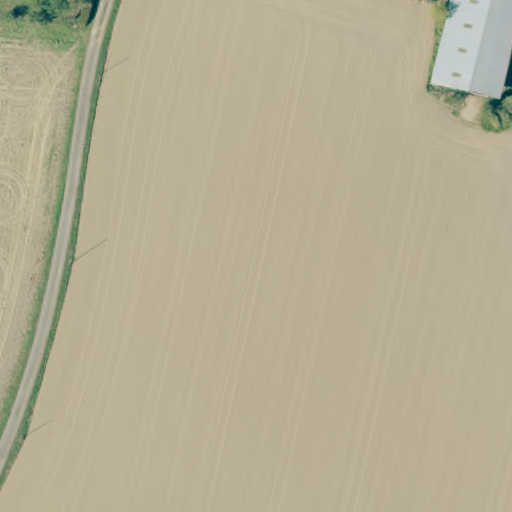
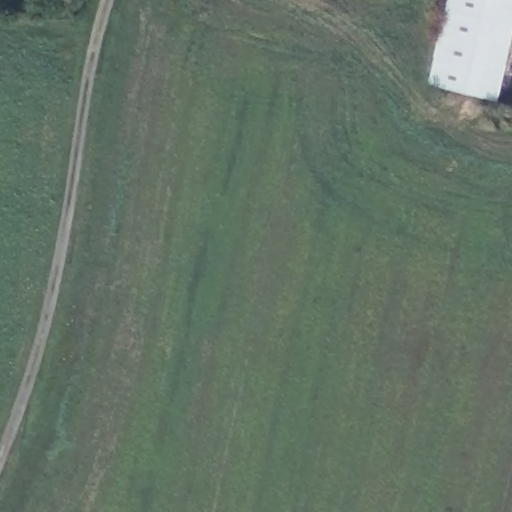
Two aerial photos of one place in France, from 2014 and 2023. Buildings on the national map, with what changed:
unchanged [(460,0),(512,0),(512,24),(493,95),(438,82),(460,0)]

